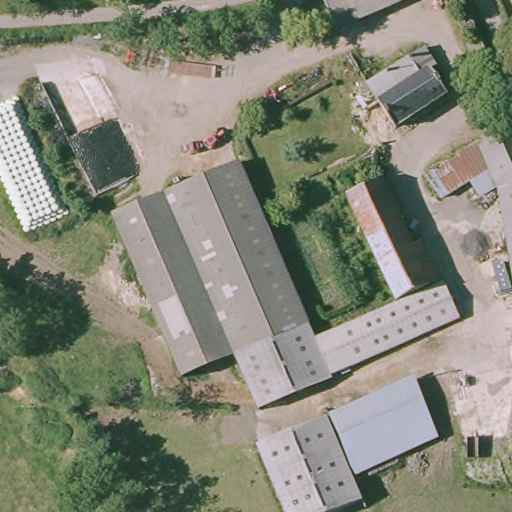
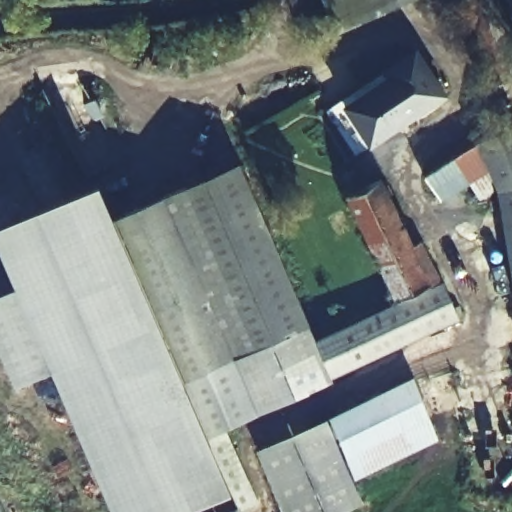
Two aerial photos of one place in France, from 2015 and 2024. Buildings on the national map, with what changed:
unchanged [(410,0),(336,33),(324,0),(410,0)]
unchanged [(379,130),(372,119),(365,121),(361,114),(355,105),(371,97),(365,86),(426,47),(439,68),(433,71),(448,94),(384,138),(379,130)]
unchanged [(504,203),(491,170),(440,199),(425,175),(468,149),(512,129),(512,260),(504,203)]
unchanged [(239,364),(186,387),(115,226),(238,169),(313,333),(239,364)]
unchanged [(383,179),(428,269),(436,265),(461,316),(450,321),(432,285),(399,300),(391,281),(349,195),(376,182),(383,179)]
new [(239,364),(256,407),(256,446),(232,459),(255,509),(250,512),(226,512),(223,507),(212,512),(102,512),(45,382),(6,396),(0,380),(0,304),(13,299),(0,263),(0,243),(106,198),(115,226),(186,387),(239,364)]
unchanged [(393,303),(384,284),(391,281),(399,300),(432,285),(450,321),(338,371),(322,334),(393,303)]
unchanged [(256,407),(239,364),(313,333),(315,338),(322,334),(338,371),(256,407)]
unchanged [(438,427),(345,463),(328,418),(421,382),(438,427)]
unchanged [(256,446),(298,430),(328,418),(345,463),(361,503),(337,512),(284,512),(268,473),(256,446)]

